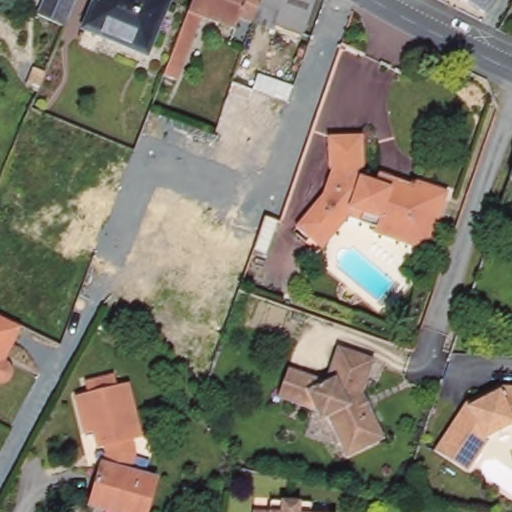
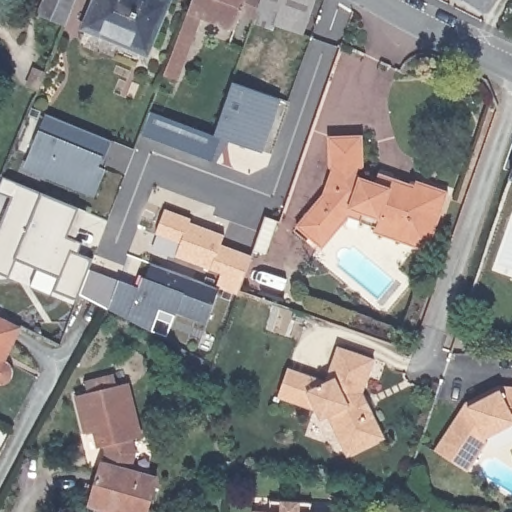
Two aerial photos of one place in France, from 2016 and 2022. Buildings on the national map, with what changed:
unchanged [(68,23),(41,12),(46,0),(77,0),(69,19),(68,23)]
unchanged [(85,26),(96,0),(173,0),(155,43),(151,54),(109,36),(85,26)]
unchanged [(254,25),(241,21),(237,34),(204,21),(179,84),(165,79),(196,0),(263,0),(261,6),(254,25)]
unchanged [(278,27),(282,14),(261,6),(263,0),(319,0),(305,38),(278,27)]
unchanged [(465,0),(496,0),(487,14),(465,0)]
new [(214,134),(233,80),(252,88),(258,71),(293,84),(288,100),(282,97),(264,153),(229,141),(216,161),(143,134),(151,110),(214,134)]
demolished [(238,143),(228,139),(220,158),(209,154),(215,136),(228,101),(234,85),(255,93),(238,143)]
new [(40,130),(39,130),(48,110),(114,138),(106,156),(102,165),(106,168),(95,193),(45,172),(26,164),(31,153),(40,130)]
unchanged [(377,232),(379,225),(364,220),(365,219),(354,215),(329,249),(317,239),(302,229),(327,195),(335,170),(334,168),(332,136),(364,134),(366,165),(359,170),(363,175),(378,180),(381,172),(406,181),(417,185),(419,180),(451,192),(432,244),(429,250),(412,244),(377,232)]
new [(68,236),(83,243),(79,254),(93,259),(90,269),(141,285),(150,264),(216,288),(222,273),(176,255),(181,244),(155,235),(165,208),(192,218),(190,222),(225,234),(222,244),(252,255),(239,295),(219,287),(207,325),(159,309),(150,330),(78,293),(76,298),(56,290),(61,277),(16,259),(9,275),(0,271),(0,229),(14,198),(0,192),(0,185),(3,177),(78,209),(68,236)]
demolished [(236,306),(164,280),(195,193),(267,219),(236,306)]
unchanged [(8,361),(11,364),(13,367),(14,369),(14,373),(13,376),(10,379),(8,381),(4,382),(1,383),(0,382),(0,316),(21,327),(5,359),(8,361)]
unchanged [(466,351),(464,354),(453,350),(464,316),(477,320),(466,351)]
unchanged [(388,439),(351,457),(333,418),(324,421),(322,413),(283,399),(293,370),(331,384),(343,349),(379,362),(367,395),(388,439)]
unchanged [(101,459),(107,444),(98,446),(93,428),(84,430),(74,392),(85,389),(83,381),(116,372),(121,383),(130,379),(144,434),(136,438),(139,449),(135,469),(101,459)]
unchanged [(490,439),(491,442),(472,469),(439,448),(468,404),(501,389),(512,390),(512,429),(490,439)]
unchanged [(87,510),(101,459),(135,469),(157,474),(147,512),(96,512),(87,510)]
unchanged [(313,501),(313,512),(255,512),(255,511),(272,512),(273,499),(284,499),(301,501),(313,501)]

